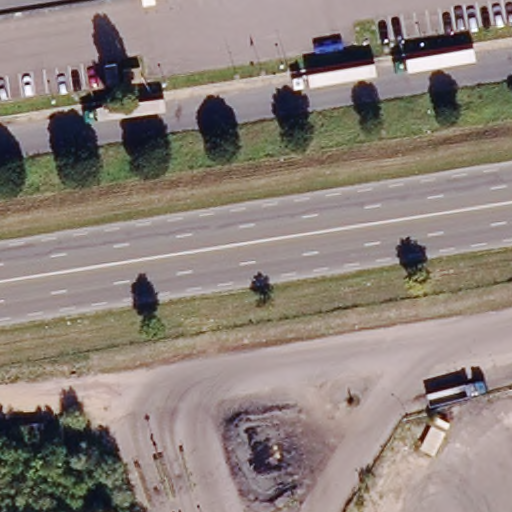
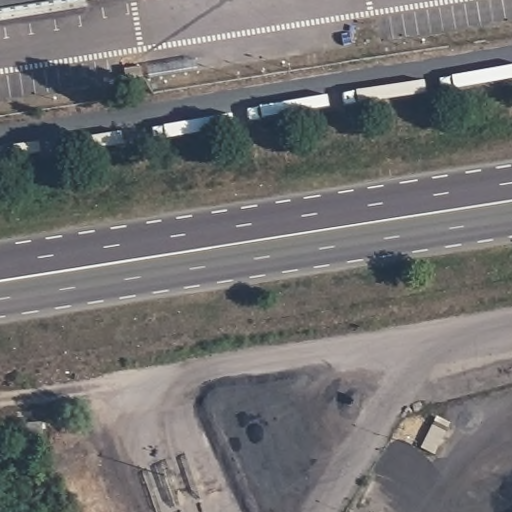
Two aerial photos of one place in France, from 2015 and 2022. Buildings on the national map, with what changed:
unchanged [(0,0),(75,0),(0,12),(0,0)]
unchanged [(42,433),(28,434),(26,422),(41,421),(42,433)]

